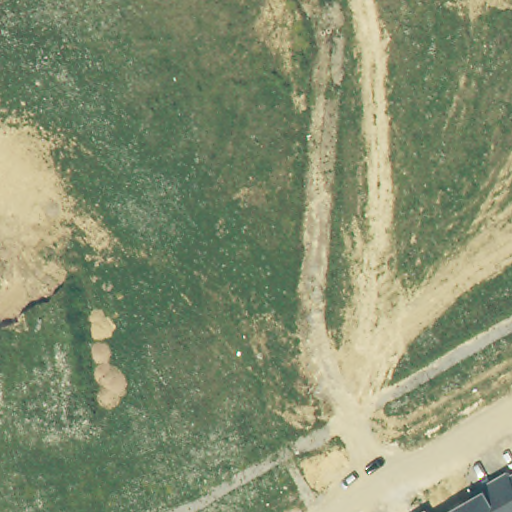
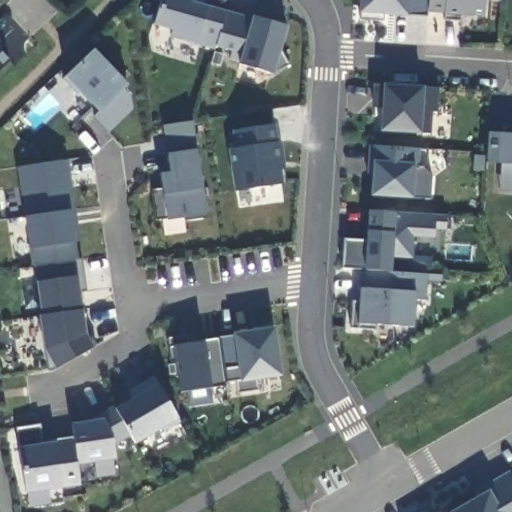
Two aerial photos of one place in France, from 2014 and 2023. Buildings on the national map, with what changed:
new [(194,3),(206,7),(226,12),(215,48),(167,35),(169,28),(153,23),(160,0),(194,0),(194,3)]
new [(484,17),(426,12),(426,17),(408,15),(381,13),(381,22),(360,20),(360,12),(361,0),(485,0),(484,17)]
new [(226,12),(251,16),(287,27),(280,50),(288,66),(273,74),(240,64),(230,61),(231,52),(215,48),(226,12)]
new [(92,50),(128,85),(121,92),(128,99),(130,112),(109,132),(95,118),(100,113),(65,77),(92,50)]
new [(12,65),(0,76),(0,52),(12,65)]
new [(385,85),(425,88),(440,89),(437,115),(431,114),(430,135),(420,134),(380,132),(381,108),(375,108),(375,85),(385,85)]
new [(161,187),(159,173),(169,172),(162,125),(191,120),(205,217),(184,220),(182,215),(155,219),(151,192),(150,188),(161,187)]
new [(485,161),(487,132),(502,133),(503,124),(512,125),(512,188),(499,187),(500,162),(485,161)]
new [(275,126),(277,143),(280,143),(285,170),(281,170),(283,186),(235,192),(230,149),(235,149),(233,132),(275,126)]
new [(418,150),(417,163),(413,197),(370,196),(373,164),(367,164),(370,146),(418,150)]
new [(68,176),(70,187),(73,208),(25,216),(24,216),(16,166),(65,159),(68,176)]
new [(75,225),(78,241),(73,242),(75,259),(34,265),(32,265),(25,216),(73,208),(75,225)]
new [(366,239),(367,209),(445,214),(444,228),(433,227),(432,236),(412,235),(410,257),(390,255),(390,263),(365,262),(365,269),(340,268),(342,238),(360,239),(366,239)]
new [(75,259),(80,258),(85,291),(78,292),(80,308),(41,314),(34,265),(75,259)]
new [(426,275),(425,302),(415,301),(413,328),(359,325),(350,325),(351,300),(360,301),(360,290),(362,272),(426,275)]
new [(47,371),(44,349),(39,315),(41,314),(80,308),(84,331),(86,330),(95,345),(55,368),(51,370),(47,371)]
new [(189,335),(190,344),(204,342),(204,340),(234,336),(275,329),(282,376),(256,380),(258,391),(239,394),(236,383),(213,387),(180,391),(175,359),(170,360),(167,338),(189,335)]
new [(40,425),(44,443),(55,442),(72,440),(70,425),(97,421),(115,410),(158,387),(176,420),(135,445),(130,437),(112,449),(115,459),(76,466),(79,487),(63,489),(24,494),(17,450),(16,428),(40,425)]
unchanged [(486,485),(512,471),(512,512),(454,512),(488,491),(486,485)]
unchanged [(429,512),(428,512),(428,511),(429,512)]

